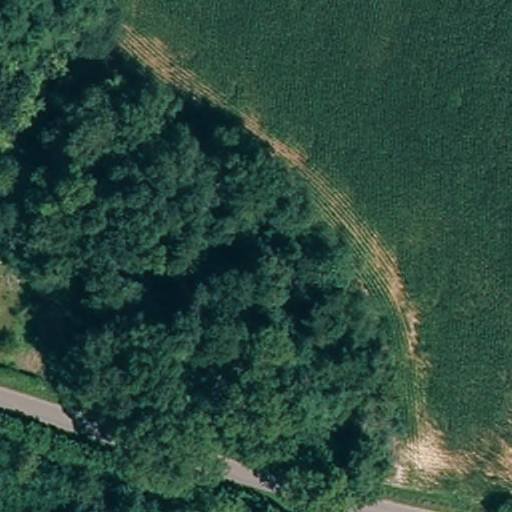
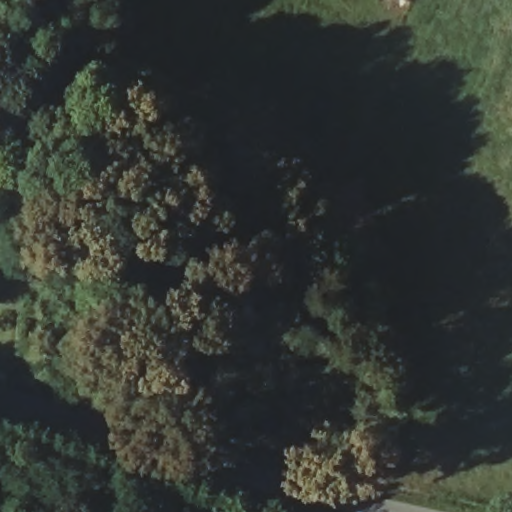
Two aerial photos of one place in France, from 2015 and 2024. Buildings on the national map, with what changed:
unchanged [(0,213),(17,219),(14,238),(0,234),(0,213)]

